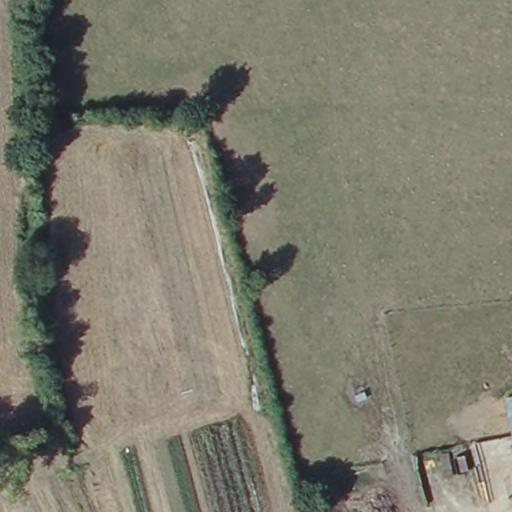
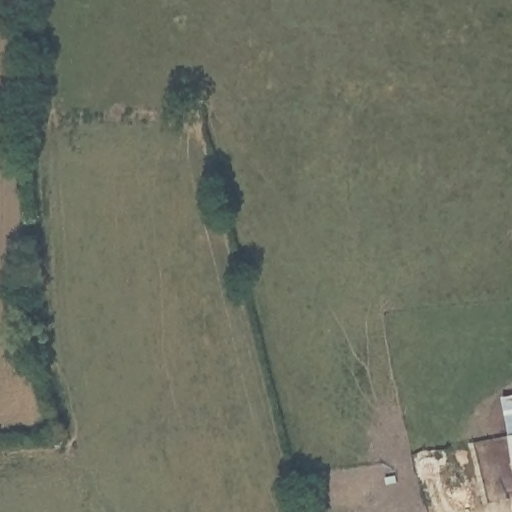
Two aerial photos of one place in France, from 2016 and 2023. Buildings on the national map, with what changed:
unchanged [(512,396),(512,451),(504,397),(512,396)]

